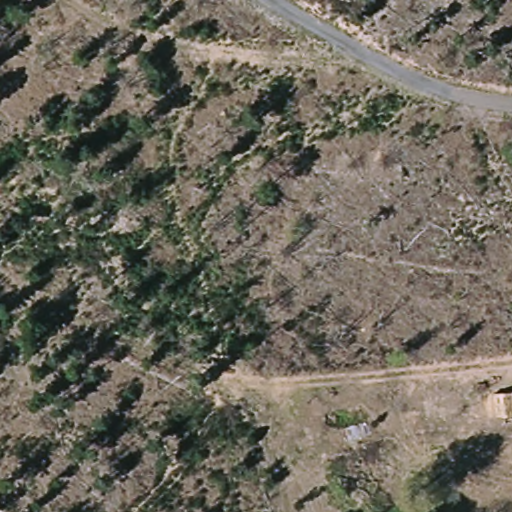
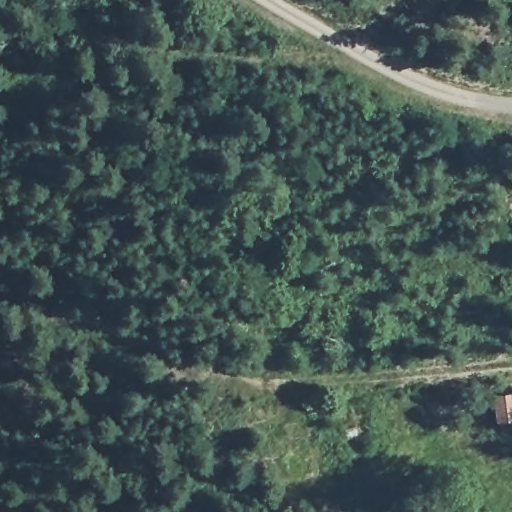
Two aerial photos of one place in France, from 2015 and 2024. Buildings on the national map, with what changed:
unchanged [(201,359),(218,356),(222,368),(206,374),(201,359)]
unchanged [(495,424),(492,396),(512,394),(512,421),(495,424)]

